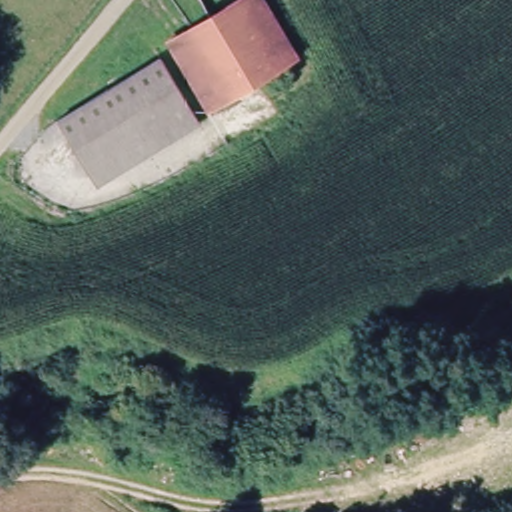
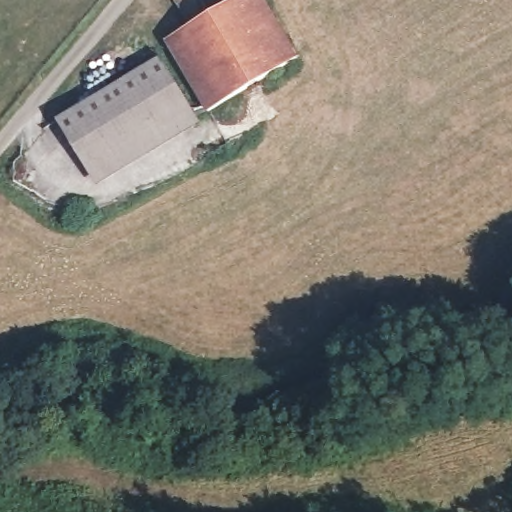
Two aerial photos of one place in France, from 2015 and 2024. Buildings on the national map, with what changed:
unchanged [(191,24),(230,0),(269,0),(301,53),(235,95),(191,24)]
unchanged [(167,39),(191,24),(235,95),(212,111),(167,39)]
unchanged [(92,170),(60,119),(163,55),(195,106),(92,170)]
unchanged [(100,182),(92,170),(195,106),(203,119),(100,182)]

